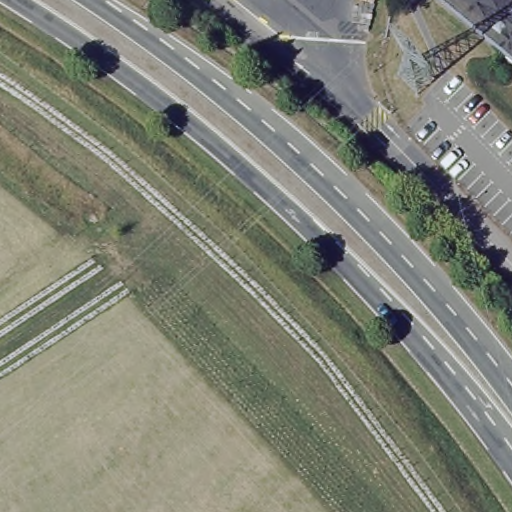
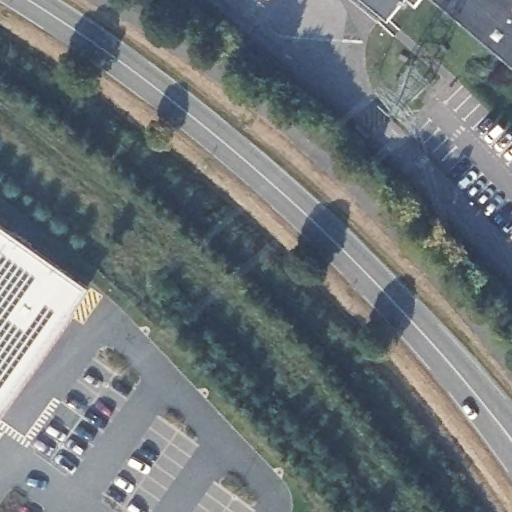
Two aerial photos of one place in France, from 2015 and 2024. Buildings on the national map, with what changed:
new [(401,5),(389,19),(365,0),(401,0),(401,5)]
unchanged [(442,0),(512,0),(512,58),(442,0)]
new [(99,299),(0,440),(0,229),(99,299)]

